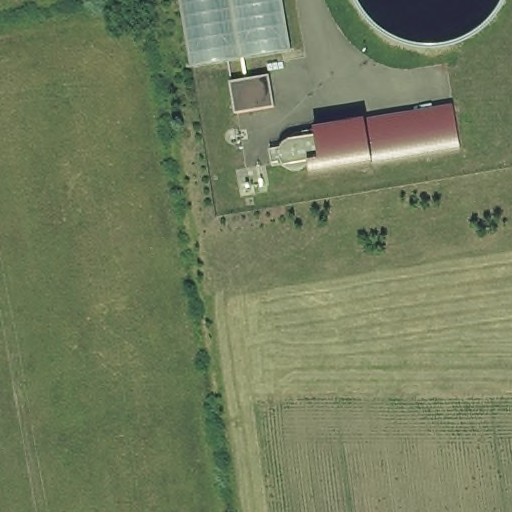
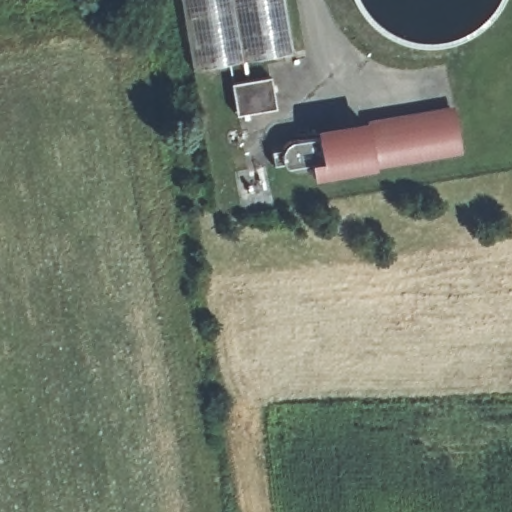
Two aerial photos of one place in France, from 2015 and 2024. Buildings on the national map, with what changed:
unchanged [(192,73),(179,0),(282,0),(291,55),(192,73)]
unchanged [(270,107),(231,114),(225,83),(265,75),(270,107)]
unchanged [(270,150),(282,148),(283,146),(284,145),(285,144),(287,142),(289,141),(291,140),(292,139),(294,139),(296,139),(317,135),(449,112),(456,111),(462,146),(455,148),(311,173),(309,163),(308,163),(307,165),(304,167),(302,168),(299,169),(296,169),(293,169),(291,169),(287,167),(286,165),(284,164),(283,163),(273,164),(270,150)]

